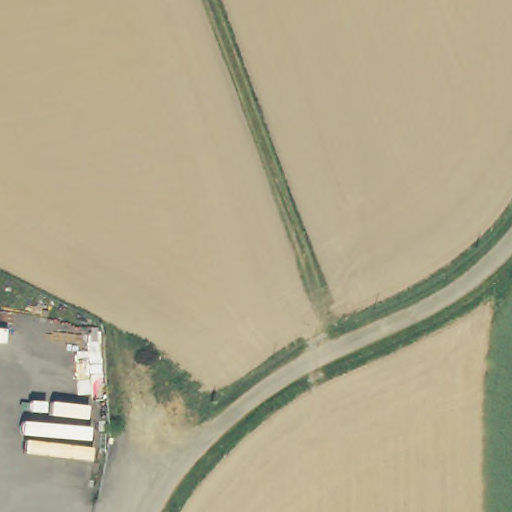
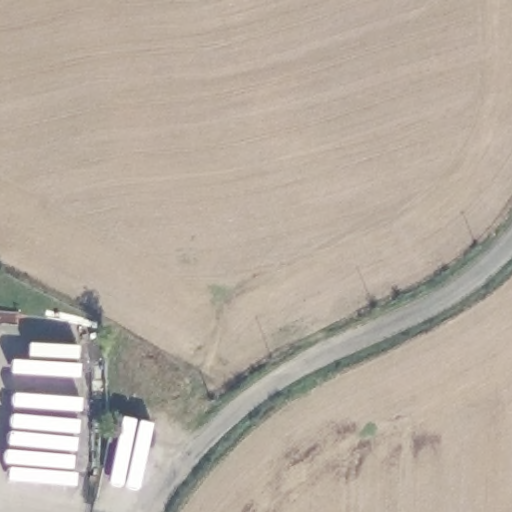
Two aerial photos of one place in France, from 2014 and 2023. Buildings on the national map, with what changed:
[]

